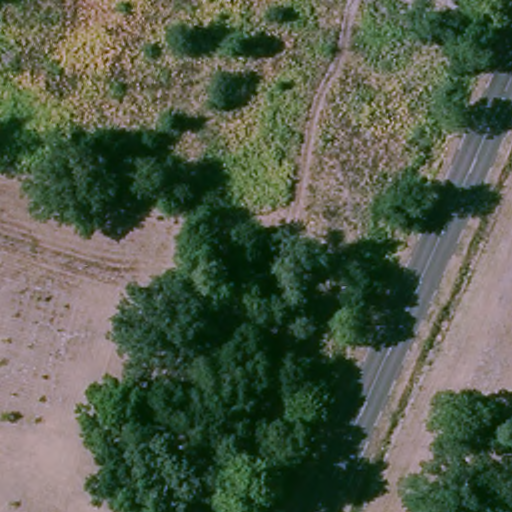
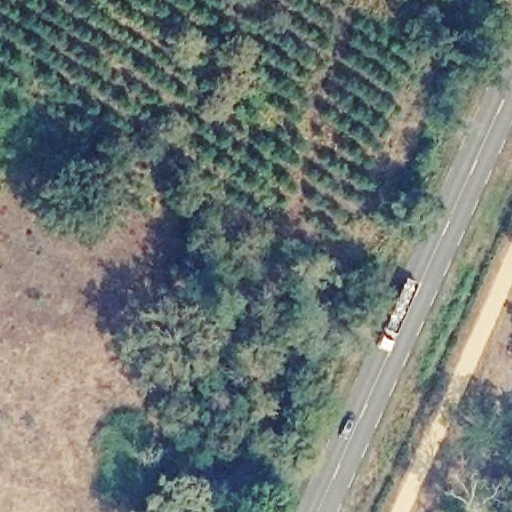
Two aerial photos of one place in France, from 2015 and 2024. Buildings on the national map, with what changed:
[]

